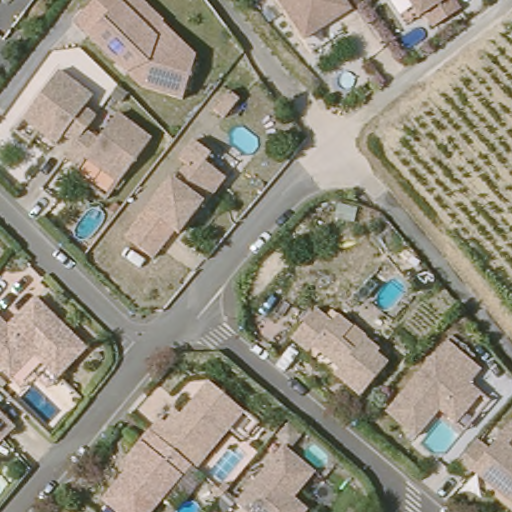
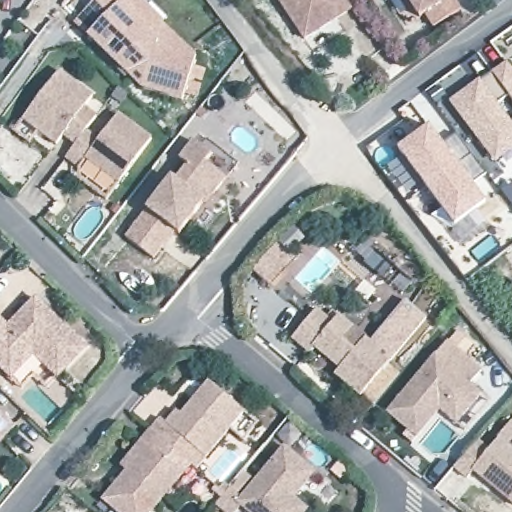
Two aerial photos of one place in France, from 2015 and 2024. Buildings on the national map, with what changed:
unchanged [(201,53),(190,101),(144,88),(81,25),(102,0),(145,0),(201,53)]
unchanged [(355,9),(311,40),(284,0),(350,0),(355,9)]
unchanged [(465,6),(438,25),(429,12),(424,15),(412,0),(461,0),(465,6)]
new [(506,60),(512,68),(512,103),(494,79),(490,81),(488,80),(506,60)]
unchanged [(15,127),(24,115),(60,67),(93,93),(85,104),(98,114),(90,123),(78,140),(65,130),(58,140),(40,127),(31,139),(15,127)]
new [(479,79),(483,83),(488,80),(490,81),(501,96),(495,100),(512,122),(512,123),(512,149),(494,163),(448,101),(479,79)]
unchanged [(155,132),(122,175),(90,150),(83,160),(70,149),(78,140),(90,123),(103,133),(123,107),(155,132)]
new [(429,126),(461,166),(487,204),(478,210),(453,228),(396,149),(429,126)]
unchanged [(175,173),(188,157),(180,151),(194,134),(211,148),(205,156),(225,172),(203,199),(201,196),(177,226),(173,222),(151,250),(123,227),(171,170),(175,173)]
new [(298,261),(269,289),(250,270),(279,241),(282,245),(298,230),(305,239),(290,253),(298,261)]
unchanged [(18,391),(8,380),(0,373),(0,325),(4,330),(33,301),(83,352),(54,381),(43,391),(31,378),(18,391)]
unchanged [(356,323),(345,335),(358,346),(369,333),(382,345),(379,348),(391,358),(364,391),(339,370),(343,364),(317,342),(313,347),(296,333),(319,305),(336,318),(341,311),(356,323)]
unchanged [(449,336),(483,365),(472,379),(483,389),(459,418),(442,404),(419,431),(389,406),(449,336)]
unchanged [(176,405),(180,408),(208,376),(243,406),(204,451),(164,417),(176,405)]
unchanged [(0,407),(15,423),(0,438),(0,407)]
unchanged [(174,465),(182,471),(147,512),(123,512),(103,495),(127,466),(121,461),(151,426),(183,454),(174,465)]
unchanged [(512,444),(512,498),(478,468),(471,475),(458,465),(476,444),(488,455),(503,436),(512,444)]
unchanged [(258,512),(241,497),(289,443),(310,462),(318,469),(296,494),(311,506),(305,512),(258,512)]

